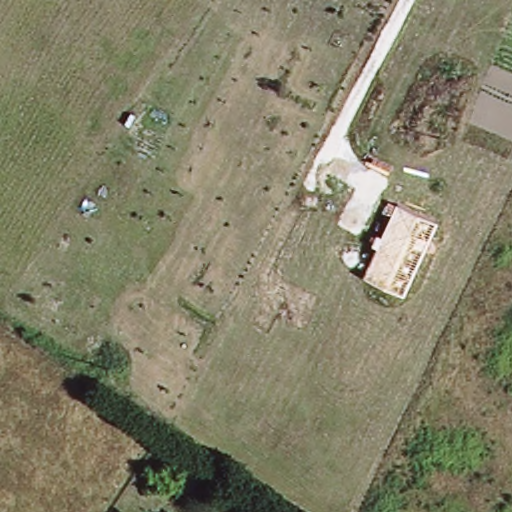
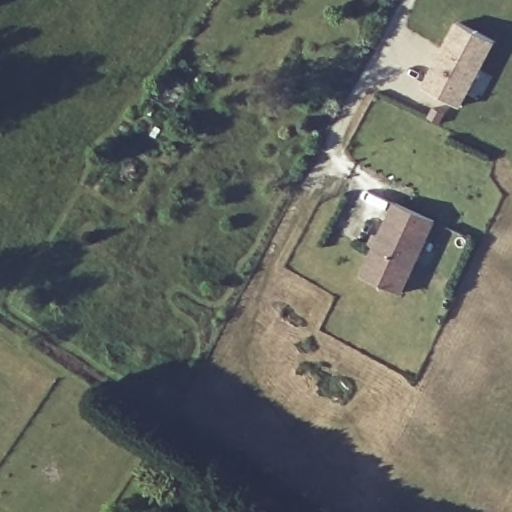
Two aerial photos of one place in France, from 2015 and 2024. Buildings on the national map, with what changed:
new [(462,23),(498,41),(464,106),(429,88),(462,23)]
unchanged [(436,221),(403,293),(362,275),(394,202),(436,221)]

